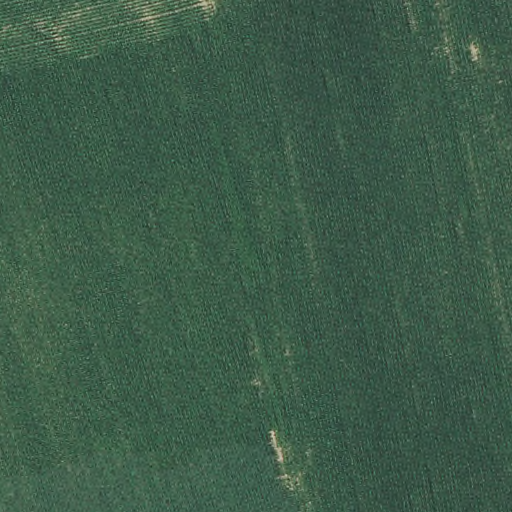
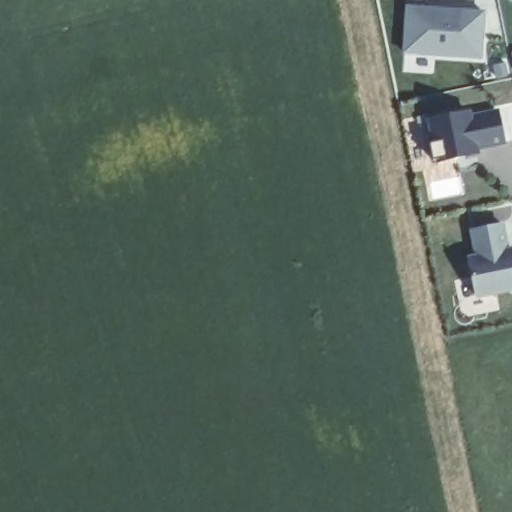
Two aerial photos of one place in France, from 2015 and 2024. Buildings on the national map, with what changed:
new [(402,55),(405,6),(486,11),(483,61),(402,55)]
new [(479,151),(480,155),(435,164),(426,118),(471,110),(472,114),(500,109),(507,145),(479,151)]
unchanged [(467,227),(497,221),(502,248),(509,252),(512,267),(512,285),(471,293),(463,256),(473,254),(467,227)]

